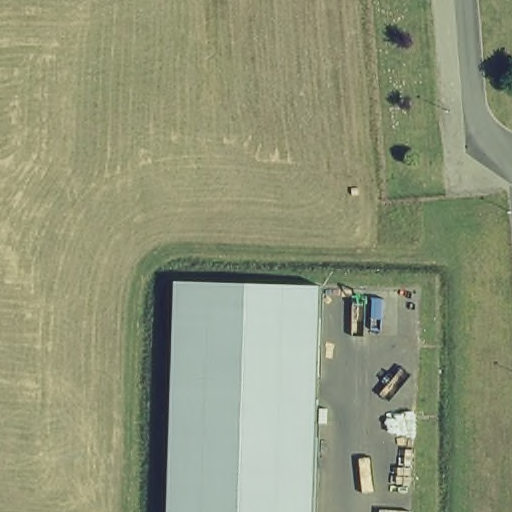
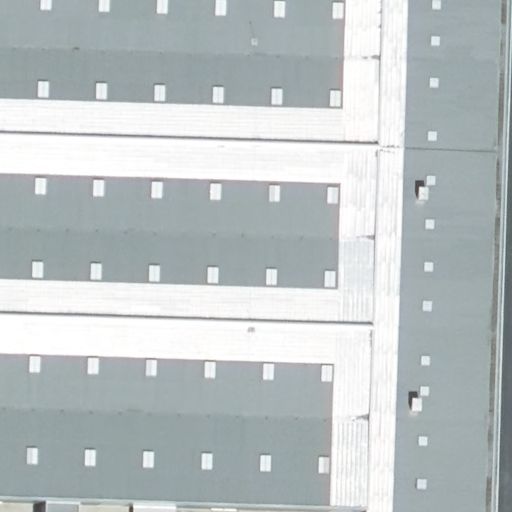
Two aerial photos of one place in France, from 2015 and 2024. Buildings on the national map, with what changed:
new [(483,512),(324,512),(0,502),(0,0),(501,0),(483,512)]
demolished [(327,288),(319,512),(176,512),(183,285),(327,288)]

